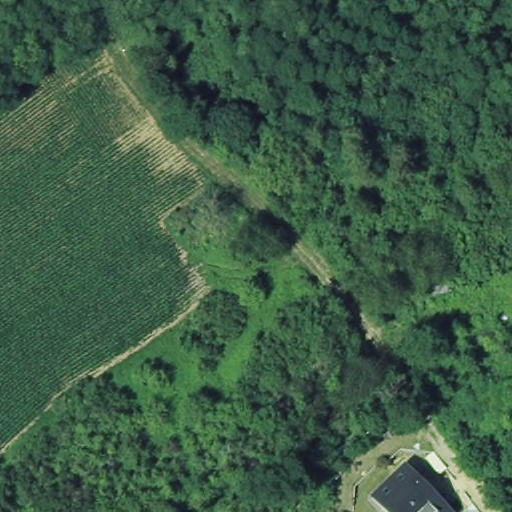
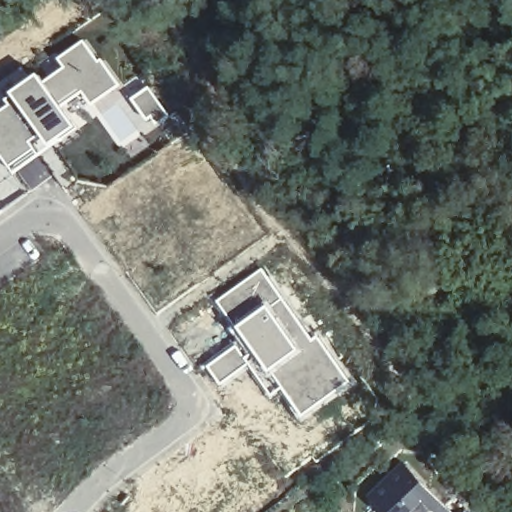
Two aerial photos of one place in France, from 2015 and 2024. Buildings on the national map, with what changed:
new [(64,69),(59,60),(85,40),(121,86),(93,107),(83,95),(66,107),(47,81),(64,69)]
new [(10,106),(6,100),(41,75),(47,81),(66,107),(80,128),(15,178),(0,165),(0,113),(10,106)]
new [(148,86),(165,109),(148,121),(131,99),(148,86)]
new [(240,346),(244,343),(216,302),(264,267),(317,339),(323,335),(359,383),(305,421),(284,391),(274,399),(251,365),(222,386),(207,366),(238,344),(240,346)]
unchanged [(409,466),(452,512),(380,512),(374,505),(409,466)]

